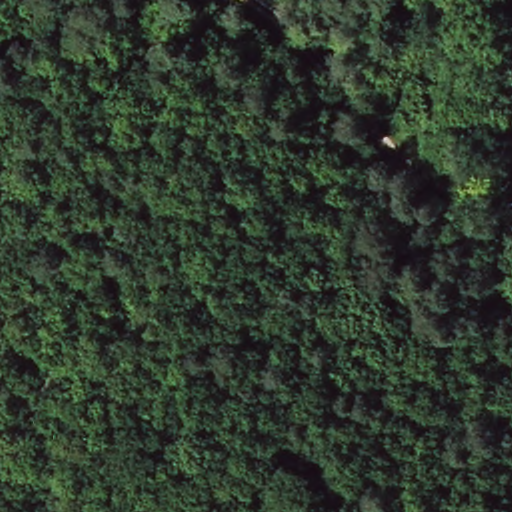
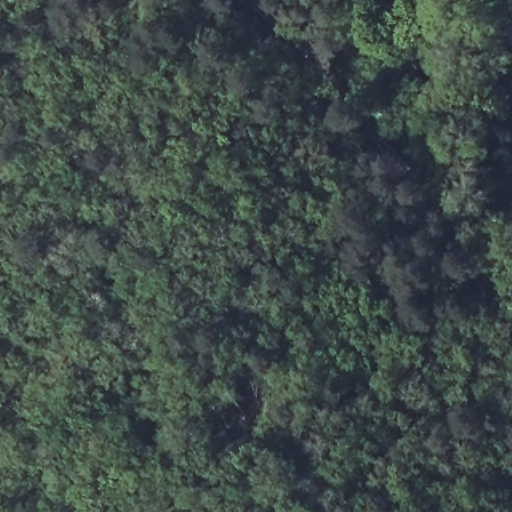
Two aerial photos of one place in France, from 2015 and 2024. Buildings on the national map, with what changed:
[]

